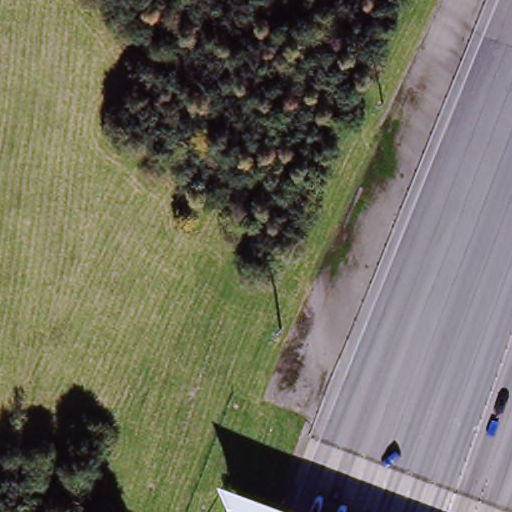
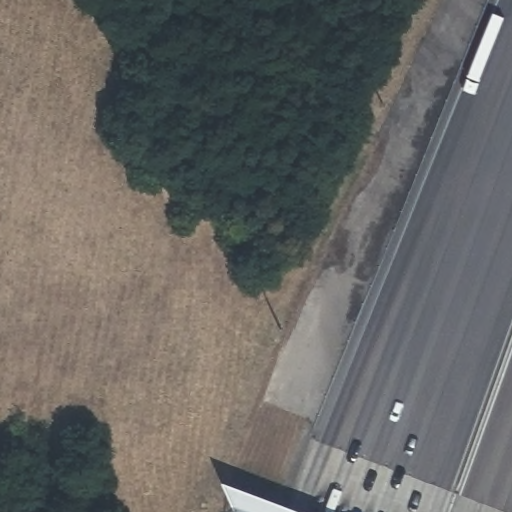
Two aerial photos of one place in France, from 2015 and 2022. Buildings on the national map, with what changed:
[]

